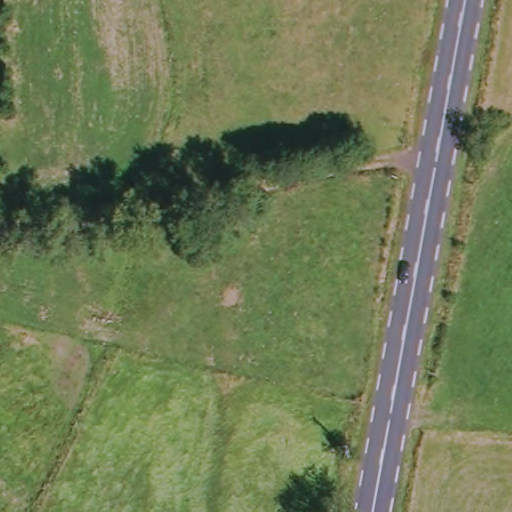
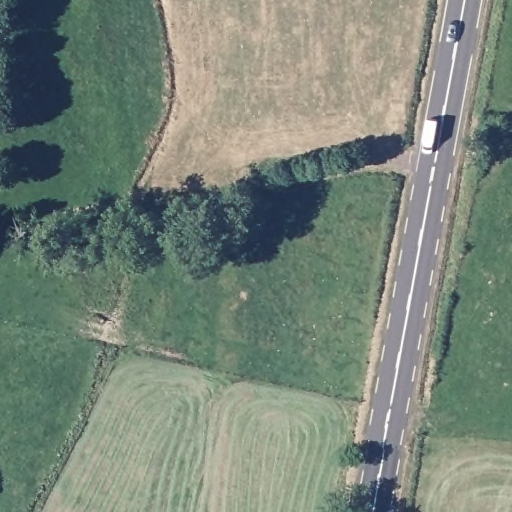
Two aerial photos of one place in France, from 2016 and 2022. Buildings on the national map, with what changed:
[]

